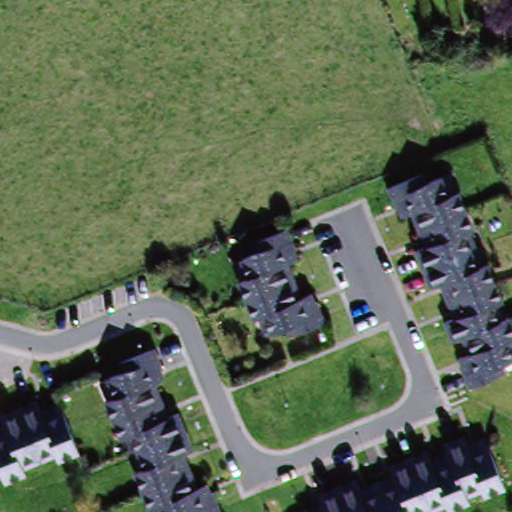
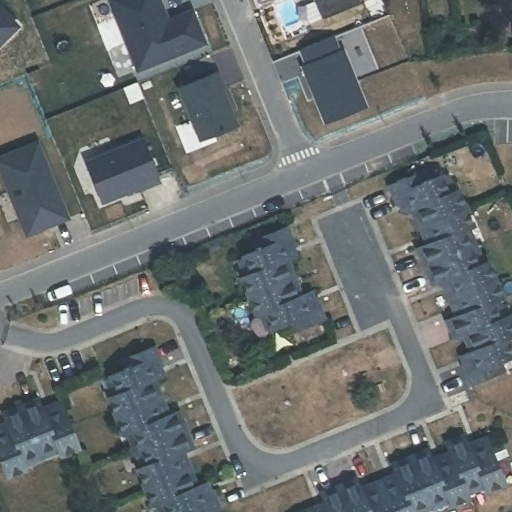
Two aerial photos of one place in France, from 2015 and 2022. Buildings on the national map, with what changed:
new [(165,10),(162,12),(166,21),(194,10),(207,41),(139,69),(111,0),(160,0),(165,10)]
new [(318,16),(312,0),(355,0),(318,16)]
new [(0,44),(0,7),(17,27),(0,44)]
new [(322,120),(299,65),(303,63),(297,48),(330,35),(336,50),(339,48),(362,104),(322,120)]
new [(212,71),(234,122),(197,137),(176,86),(212,71)]
new [(138,140),(154,179),(101,202),(85,161),(138,140)]
new [(0,155),(34,141),(64,216),(23,233),(0,175),(0,155)]
unchanged [(446,324),(461,317),(445,282),(431,288),(416,254),(426,249),(407,205),(396,210),(387,190),(422,175),(427,184),(440,177),(450,197),(458,192),(475,230),(465,235),(480,268),(488,265),(504,302),(494,308),(501,323),(511,319),(512,322),(512,342),(508,343),(512,351),(512,362),(501,367),(505,375),(472,390),(462,370),(472,363),(462,340),(455,343),(446,324)]
unchanged [(296,335),(290,325),(276,331),(267,313),(258,318),(242,281),(251,277),(242,257),(258,250),(256,242),(290,227),(298,247),(287,254),(311,306),(320,300),(328,320),(296,335)]
unchanged [(158,506),(142,468),(152,462),(137,430),(127,435),(111,398),(123,393),(115,375),(130,367),(127,360),(161,345),(169,364),(157,371),(177,414),(187,410),(202,445),(192,450),(211,493),(222,489),(230,508),(222,512),(171,512),(167,503),(158,506)]
unchanged [(7,482),(0,466),(0,435),(7,431),(1,418),(37,403),(44,417),(62,411),(81,452),(61,461),(55,450),(21,466),(24,475),(7,482)]
unchanged [(428,451),(434,465),(452,458),(446,445),(464,437),(470,451),(489,443),(507,485),(489,492),(485,482),(467,490),(471,500),(453,508),(447,499),(418,512),(319,512),(324,510),(318,495),(356,480),(364,495),(397,481),(392,466),(428,451)]

